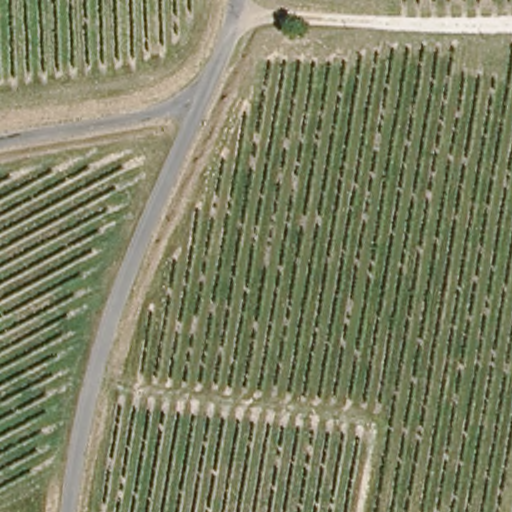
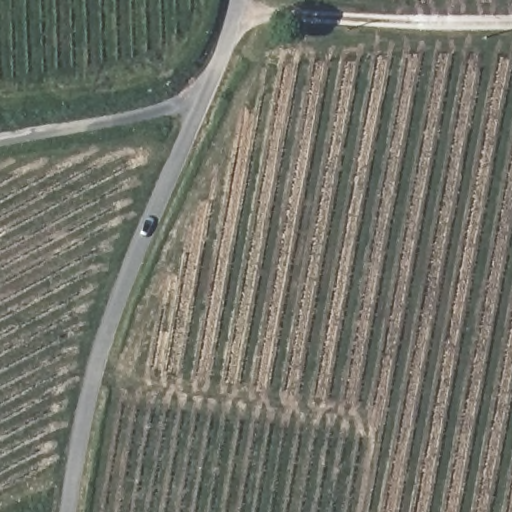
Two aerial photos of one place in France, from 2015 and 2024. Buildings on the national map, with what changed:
[]

